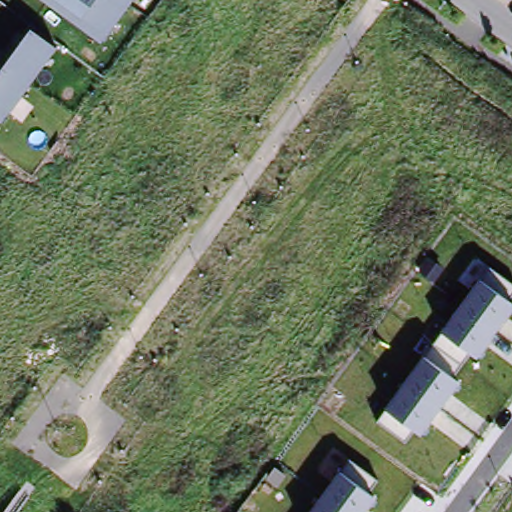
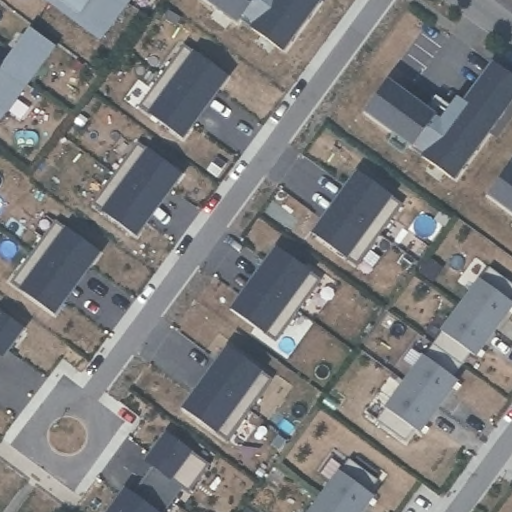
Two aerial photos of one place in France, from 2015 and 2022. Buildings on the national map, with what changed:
unchanged [(99,42),(44,0),(130,0),(99,42)]
new [(211,0),(275,0),(276,0),(314,0),(319,4),(283,52),(251,30),(250,31),(238,22),(239,20),(211,0)]
unchanged [(30,27),(57,47),(2,124),(0,122),(0,61),(3,64),(30,27)]
new [(181,139),(138,108),(161,76),(184,45),(226,76),(212,96),(204,108),(195,120),(181,139)]
new [(367,114),(389,85),(436,119),(435,120),(447,130),(493,66),(512,80),(512,103),(456,179),(426,157),(425,160),(411,150),(412,147),(367,114)]
new [(133,237),(91,205),(114,174),(136,143),(179,175),(165,194),(156,205),(148,217),(133,237)]
new [(490,197),(512,168),(512,213),(490,197)]
new [(344,192),(358,173),(401,205),(378,235),(355,267),(312,235),(326,216),(335,205),(344,192)]
new [(52,315),(9,284),(32,252),(55,221),(97,252),(83,272),(75,284),(66,296),(52,315)]
new [(263,268),(277,249),(320,280),(297,311),(275,343),(232,311),(246,292),(255,280),(263,268)]
unchanged [(404,440),(375,421),(487,267),(512,284),(512,294),(508,299),(512,302),(512,310),(477,360),(465,355),(452,375),(461,381),(420,436),(410,431),(404,440)]
new [(5,351),(0,347),(0,313),(21,329),(5,351)]
new [(214,367),(228,348),(271,380),(248,410),(225,442),(183,410),(197,391),(205,380),(214,367)]
new [(152,470),(145,464),(161,442),(203,472),(187,495),(179,490),(170,502),(143,482),(152,470)]
unchanged [(376,495),(364,512),(306,512),(338,470),(342,471),(350,459),(376,478),(368,490),(376,495)]
new [(134,495),(143,482),(170,502),(163,512),(111,512),(110,511),(126,490),(134,495)]

